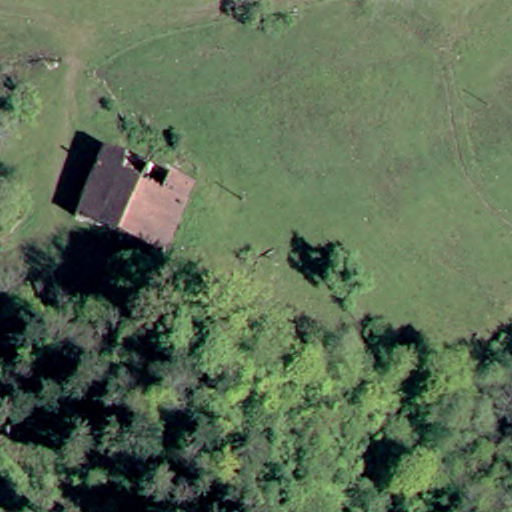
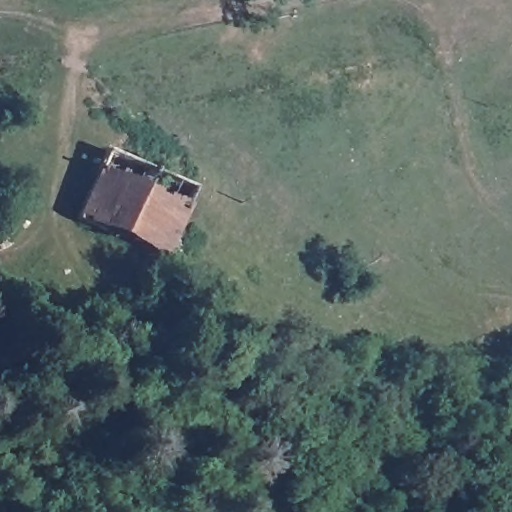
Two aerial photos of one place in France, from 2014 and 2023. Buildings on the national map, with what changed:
unchanged [(100,159),(173,191),(155,247),(79,217),(99,164),(100,159)]

